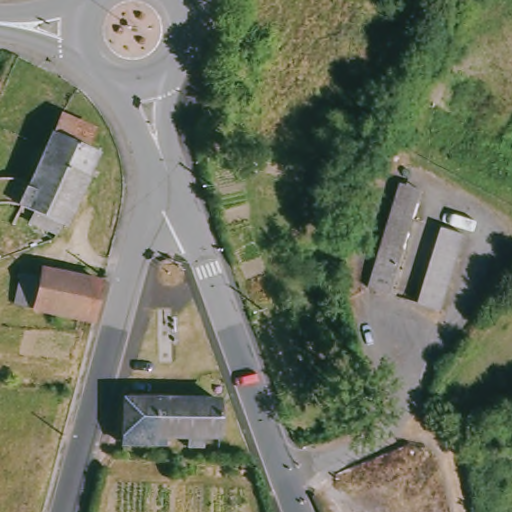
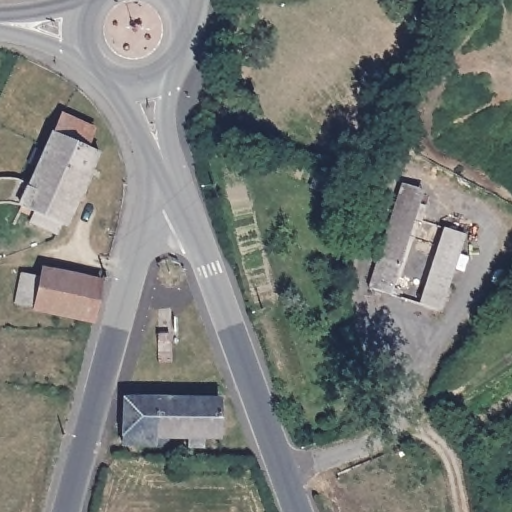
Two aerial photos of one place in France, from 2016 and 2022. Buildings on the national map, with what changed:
unchanged [(70,227),(61,223),(57,234),(31,224),(37,212),(25,205),(56,134),(60,135),(69,116),(107,131),(99,153),(103,154),(70,227)]
unchanged [(395,292),(372,285),(404,190),(417,194),(395,292)]
unchanged [(444,311),(422,304),(445,229),(467,234),(444,311)]
unchanged [(87,317),(32,305),(41,268),(97,280),(87,317)]
unchanged [(219,399),(218,435),(203,434),(202,445),(187,444),(187,434),(167,434),(167,444),(123,442),(125,398),(219,399)]

